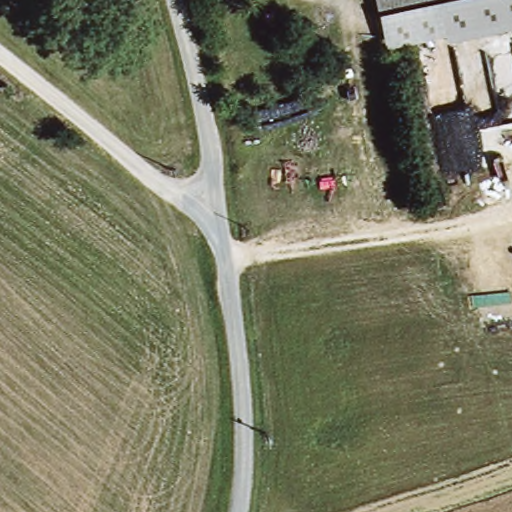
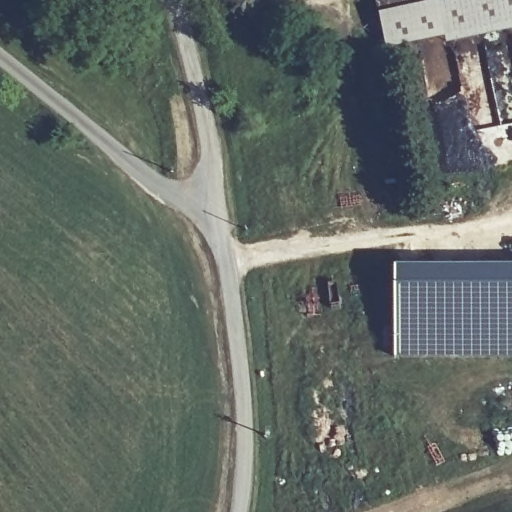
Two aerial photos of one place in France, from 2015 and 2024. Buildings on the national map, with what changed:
unchanged [(370,0),(454,0),(434,5),(374,18),(370,0)]
unchanged [(512,29),(444,45),(434,5),(454,0),(512,0),(512,29)]
new [(512,263),(512,358),(393,358),(393,263),(512,263)]

